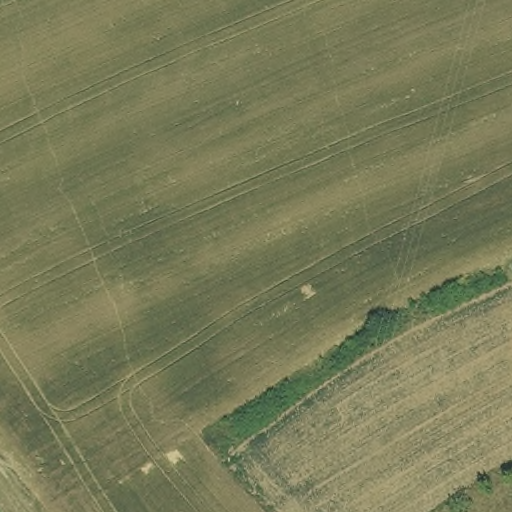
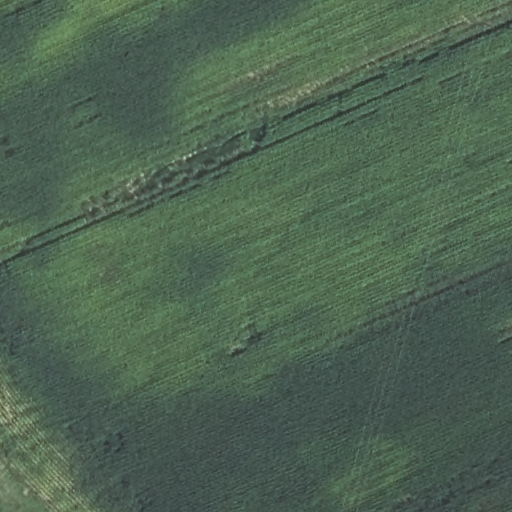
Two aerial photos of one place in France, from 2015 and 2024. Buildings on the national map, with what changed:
[]

